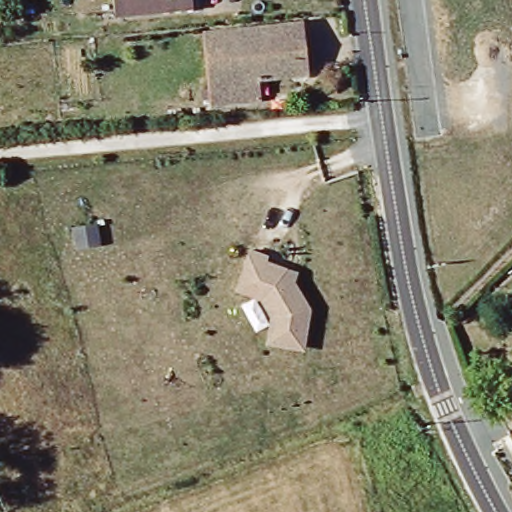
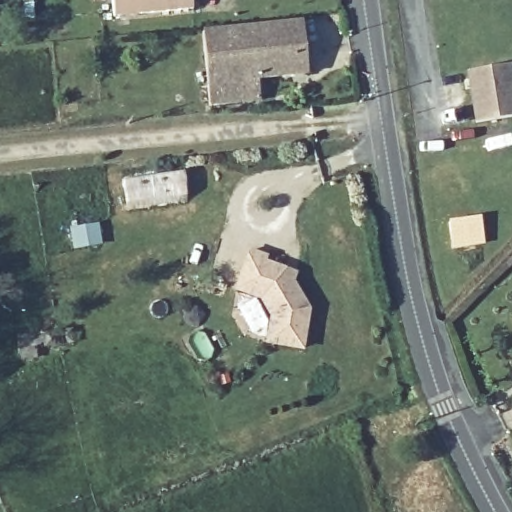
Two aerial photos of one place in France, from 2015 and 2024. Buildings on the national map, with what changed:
unchanged [(120,0),(201,0),(202,12),(122,20),(120,0)]
unchanged [(298,24),(302,74),(251,79),(254,99),(203,103),(197,32),(298,24)]
new [(465,71),(512,63),(512,116),(474,122),(465,71)]
unchanged [(304,349),(270,342),(274,316),(263,297),(239,289),(252,250),(269,255),(267,261),(288,269),(298,273),(295,281),(311,310),(304,349)]

